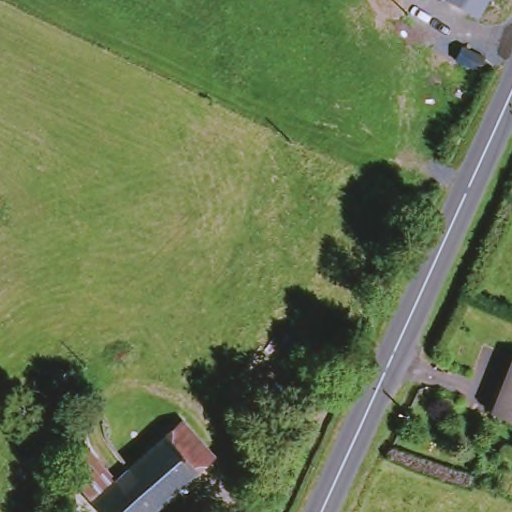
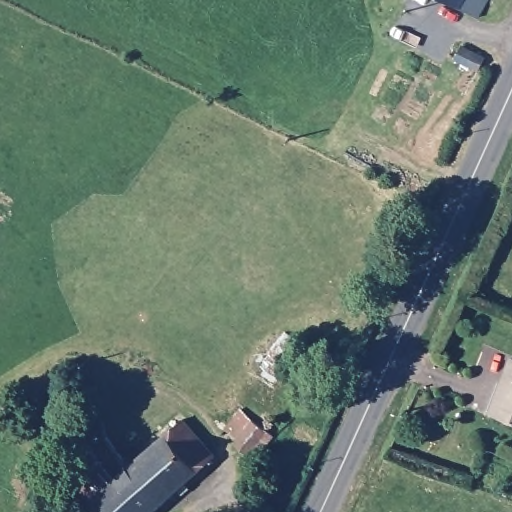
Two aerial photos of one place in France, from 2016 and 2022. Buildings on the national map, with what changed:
unchanged [(493,2),(480,22),(444,0),(491,0),(493,2)]
unchanged [(452,54),(458,42),(484,56),(477,67),(452,54)]
unchanged [(296,429),(252,465),(238,445),(245,438),(234,420),(271,392),(296,429)]
unchanged [(512,396),(512,423),(503,419),(512,396)]
unchanged [(98,451),(121,475),(187,422),(219,460),(157,512),(105,512),(97,502),(72,472),(98,451)]

